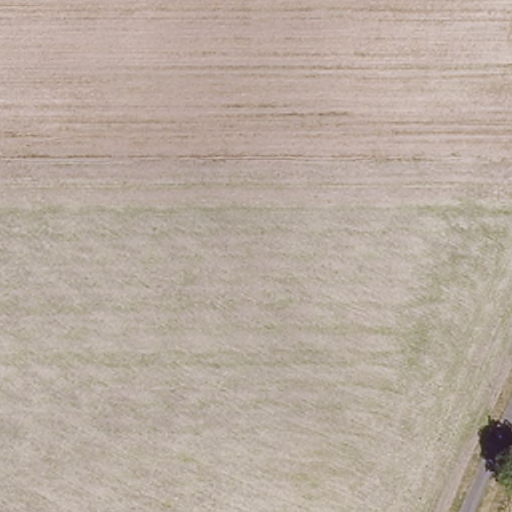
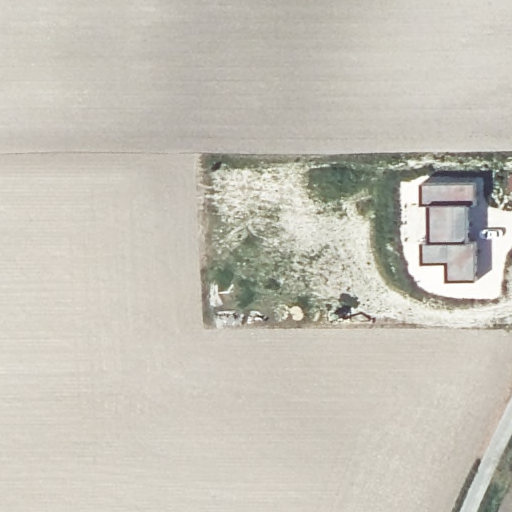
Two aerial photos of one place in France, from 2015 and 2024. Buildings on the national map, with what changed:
new [(482,182),(482,205),(474,205),(474,241),(482,241),(482,281),(452,281),(451,263),(427,263),(426,242),(409,242),(409,204),(427,205),(426,182),(482,182)]

